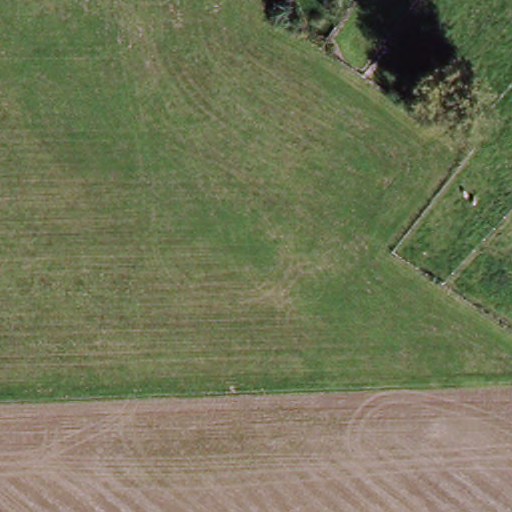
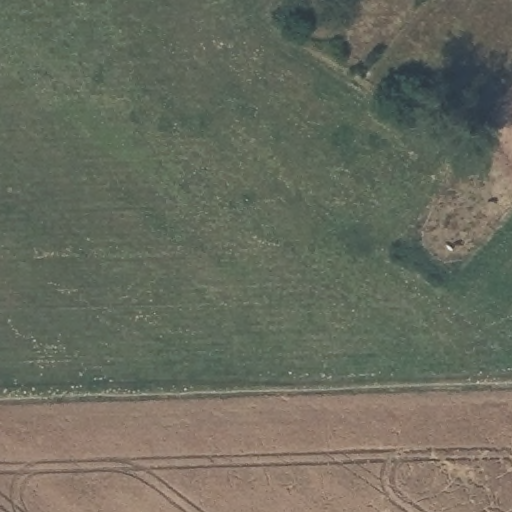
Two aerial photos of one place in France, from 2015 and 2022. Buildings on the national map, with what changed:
[]

